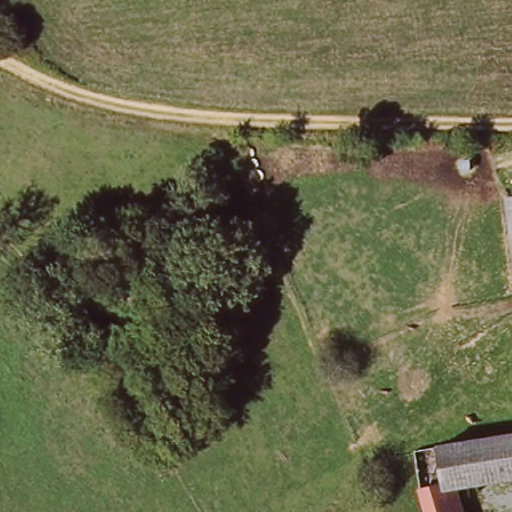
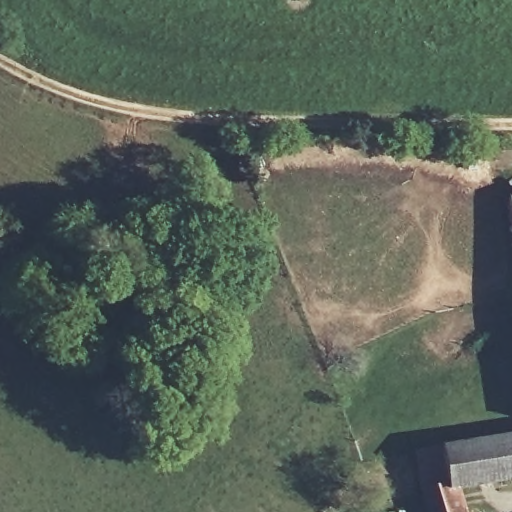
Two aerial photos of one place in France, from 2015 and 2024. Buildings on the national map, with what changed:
unchanged [(512,186),(512,235),(506,187),(512,186)]
unchanged [(463,512),(423,512),(415,450),(512,436),(512,482),(459,493),(463,512)]

